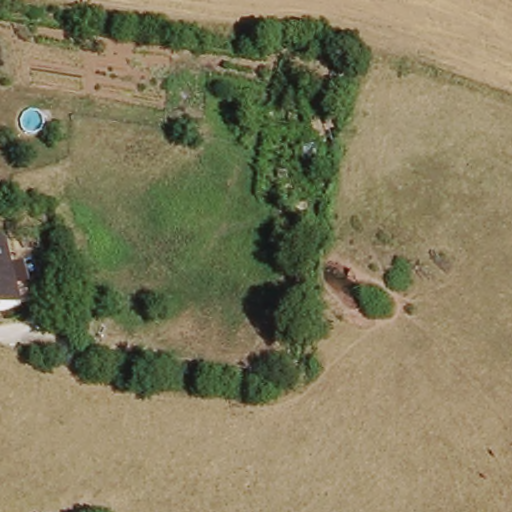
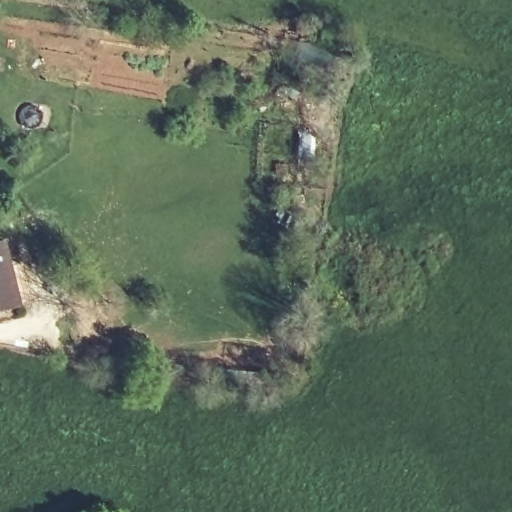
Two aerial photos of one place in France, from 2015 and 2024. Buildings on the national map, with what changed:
unchanged [(24,306),(0,311),(0,244),(8,242),(18,268),(26,267),(35,303),(24,306)]

